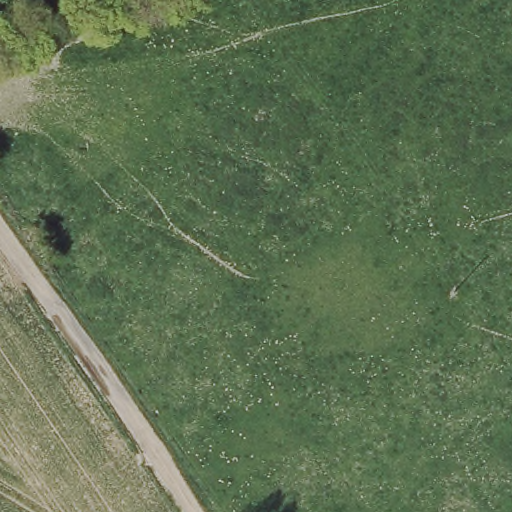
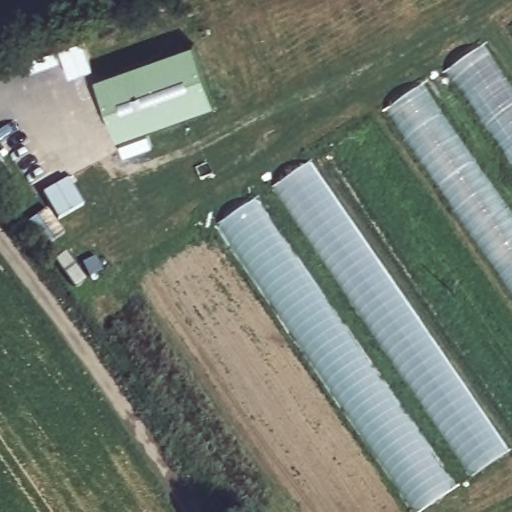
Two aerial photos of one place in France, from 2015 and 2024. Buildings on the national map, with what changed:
new [(196,42),(218,104),(118,139),(96,77),(196,42)]
new [(445,74),(482,45),(512,89),(512,172),(445,74)]
new [(384,113),(421,86),(512,217),(512,299),(384,113)]
new [(271,189),(309,163),(508,454),(470,479),(271,189)]
new [(67,235),(45,248),(30,222),(51,209),(43,196),(70,180),(85,205),(59,221),(67,235)]
new [(455,489),(422,512),(413,512),(217,227),(255,200),(455,489)]

